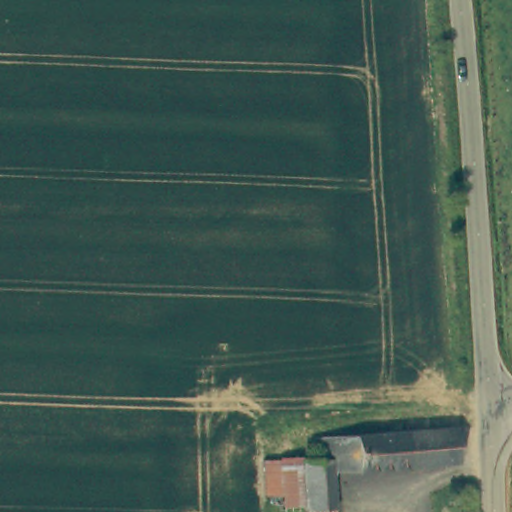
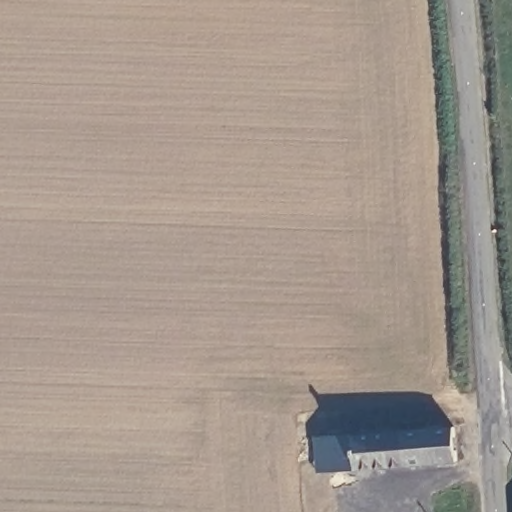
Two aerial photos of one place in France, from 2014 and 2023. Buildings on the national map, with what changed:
unchanged [(314,436),(453,426),(456,461),(331,471),(331,456),(315,456),(314,436)]

